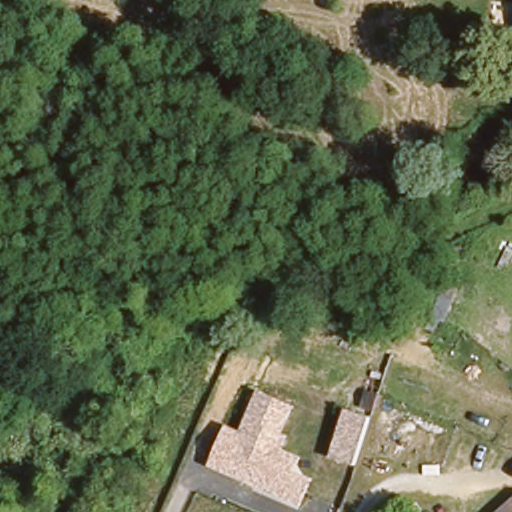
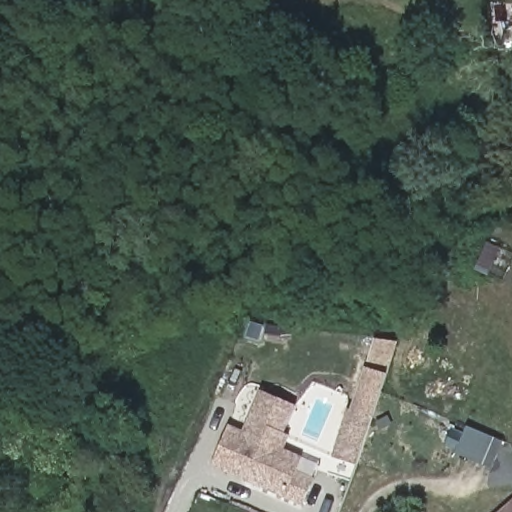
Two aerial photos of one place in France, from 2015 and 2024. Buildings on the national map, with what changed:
unchanged [(275,258),(275,259),(249,265),(247,255),(255,252),(264,250),(273,249),(275,258)]
unchanged [(356,466),(332,459),(372,341),(397,341),(356,466)]
unchanged [(211,466),(229,425),(244,431),(260,392),(296,405),(284,433),(292,436),(285,450),(302,457),(297,470),(315,477),(303,504),(211,466)]
new [(491,470),(453,455),(465,426),(503,441),(491,470)]
unchanged [(512,497),(512,512),(493,512),(512,497)]

